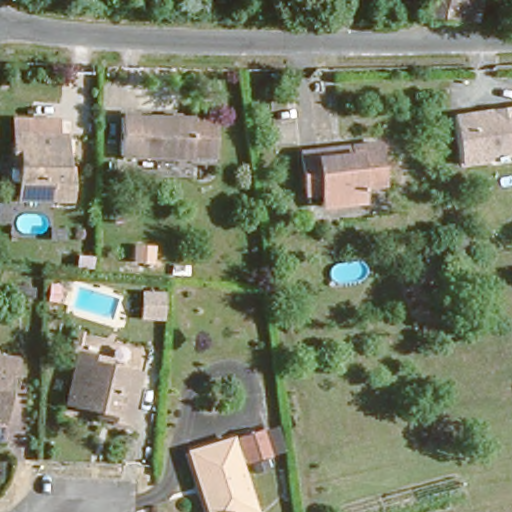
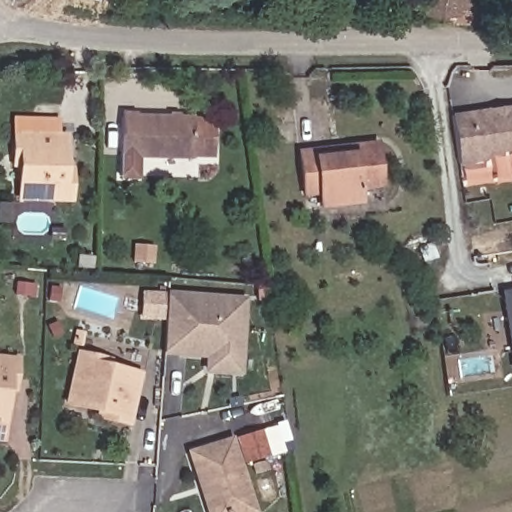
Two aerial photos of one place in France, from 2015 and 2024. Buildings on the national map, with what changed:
unchanged [(423,5),(423,0),(482,0),(476,20),(423,5)]
unchanged [(126,105),(199,110),(199,114),(219,115),(216,150),(124,144),(126,105)]
unchanged [(512,105),(512,151),(490,155),(491,161),(460,166),(452,114),(512,105)]
unchanged [(21,124),(68,128),(64,174),(72,175),(71,197),(26,192),(30,145),(18,144),(21,124)]
unchanged [(305,146),(324,144),(325,149),(353,144),(352,136),(381,132),(387,179),(366,182),(367,195),(323,201),(322,187),(311,188),(305,146)]
new [(512,172),(508,152),(512,151),(512,172)]
new [(512,289),(512,372),(500,290),(512,289)]
new [(141,320),(143,292),(247,297),(242,376),(206,373),(203,359),(162,356),(164,322),(141,320)]
unchanged [(99,347),(97,360),(142,369),(132,421),(109,417),(111,407),(67,398),(77,343),(99,347)]
unchanged [(0,434),(0,352),(17,354),(16,380),(6,380),(4,418),(3,434),(0,434)]
unchanged [(264,454),(241,461),(234,436),(257,429),(264,454)]
unchanged [(187,448),(228,436),(249,504),(217,512),(215,512),(207,483),(198,485),(187,448)]

